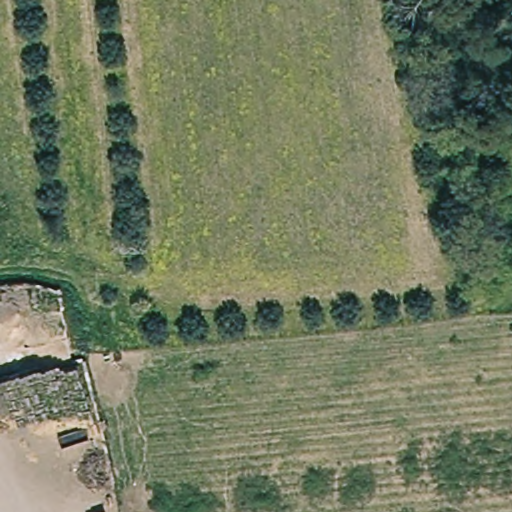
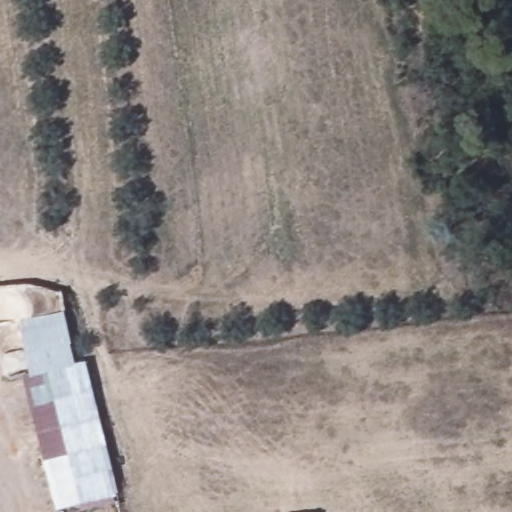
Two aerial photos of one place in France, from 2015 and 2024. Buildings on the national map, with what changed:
new [(17,320),(62,310),(73,362),(28,372),(17,320)]
new [(55,507),(42,453),(59,448),(55,426),(37,430),(23,373),(83,360),(113,493),(55,507)]

